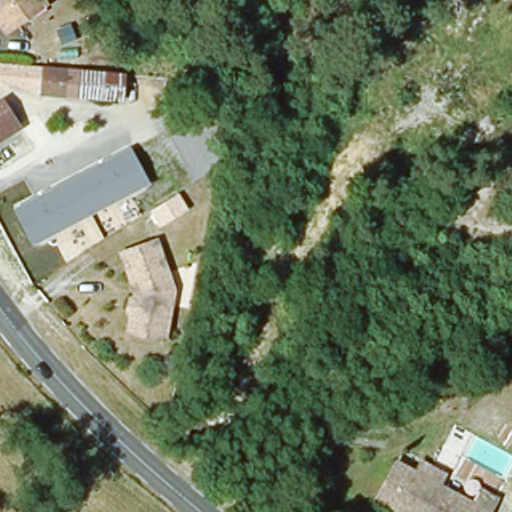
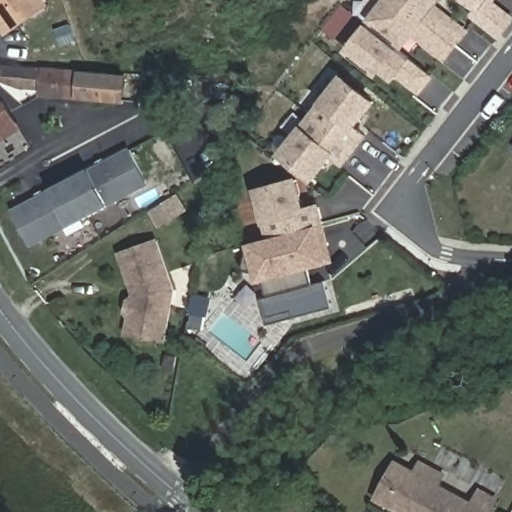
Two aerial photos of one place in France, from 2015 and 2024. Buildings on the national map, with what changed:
unchanged [(6,32),(0,22),(0,0),(44,0),(46,4),(6,32)]
new [(384,0),(399,0),(454,43),(443,57),(421,39),(425,34),(415,26),(402,43),(370,18),(384,0)]
new [(428,10),(438,18),(442,13),(464,30),(454,43),(399,0),(436,0),(428,10)]
new [(498,34),(472,13),(477,7),(469,0),(488,0),(510,18),(498,34)]
new [(379,67),(375,72),(346,49),(366,23),(430,74),(417,90),(396,72),(392,77),(379,67)]
unchanged [(45,92),(23,91),(2,83),(2,81),(0,79),(0,68),(127,79),(125,105),(45,99),(45,92)]
new [(340,77),(370,101),(351,126),(359,132),(348,145),(310,115),(340,77)]
unchanged [(0,103),(1,102),(18,127),(0,138),(0,103)]
new [(348,145),(338,159),(330,152),(310,177),(280,154),(310,115),(348,145)]
unchanged [(32,245),(14,210),(132,147),(151,185),(32,245)]
new [(294,179),(302,209),(316,206),(320,222),(319,222),(269,236),(256,189),(294,179)]
unchanged [(160,227),(150,211),(179,193),(189,209),(160,227)]
new [(247,242),(269,236),(319,222),(325,244),(300,251),(309,283),(323,280),(331,306),(292,316),(290,310),(266,316),(261,296),(265,295),(260,273),(241,268),(247,242)]
unchanged [(159,241),(177,288),(168,340),(131,333),(134,314),(129,310),(131,300),(137,297),(138,292),(136,285),(123,253),(159,241)]
unchanged [(442,477),(436,488),(480,512),(397,512),(386,506),(375,501),(394,465),(405,471),(413,476),(419,465),(442,477)]

